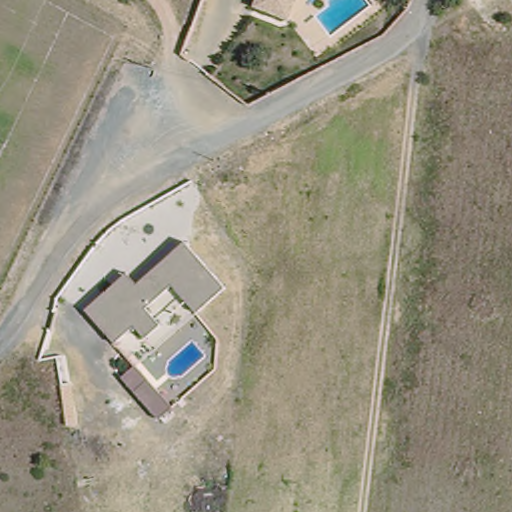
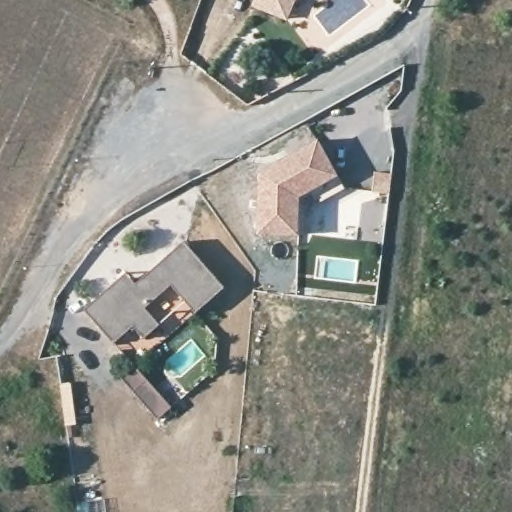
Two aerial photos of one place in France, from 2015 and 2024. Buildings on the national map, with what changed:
unchanged [(256,0),(300,0),(294,5),(285,18),(277,12),(256,0)]
new [(345,189),(306,209),(306,235),(301,235),(259,234),(260,171),(320,140),(345,189)]
unchanged [(131,272),(141,281),(188,241),(226,285),(198,311),(172,284),(148,305),(162,323),(147,335),(136,324),(117,340),(88,309),(131,272)]
new [(163,407),(147,419),(125,390),(113,374),(127,363),(140,379),(141,378),(163,407)]

